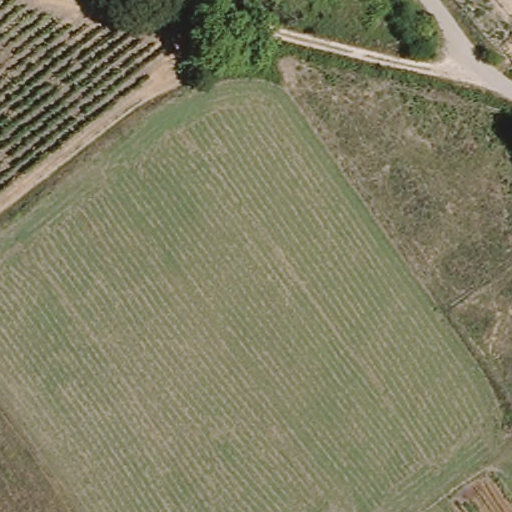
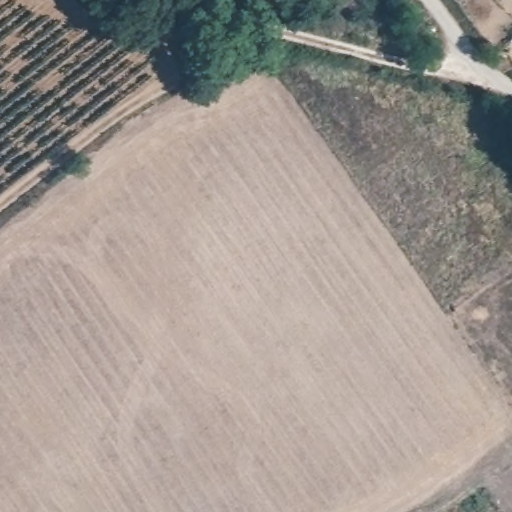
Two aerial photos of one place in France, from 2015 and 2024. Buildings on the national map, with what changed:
unchanged [(477,0),(476,1),(475,0),(477,0)]

